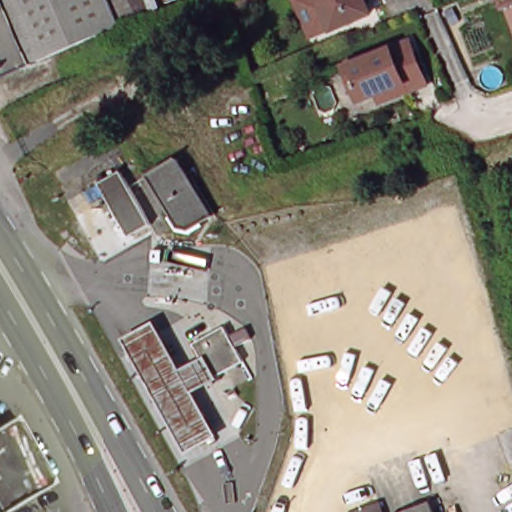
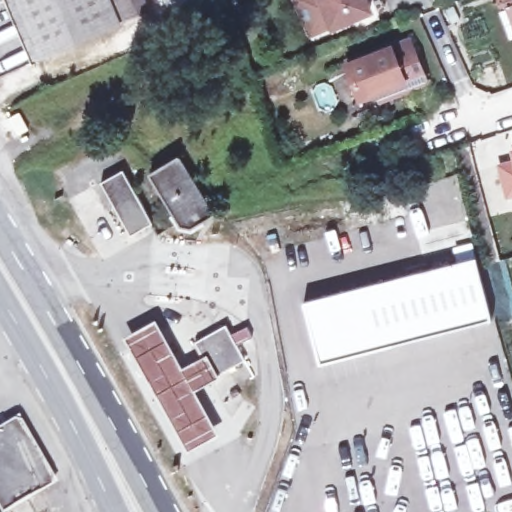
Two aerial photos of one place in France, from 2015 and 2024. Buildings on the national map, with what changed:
unchanged [(7,0),(116,0),(122,16),(30,55),(7,0)]
unchanged [(122,16),(116,0),(146,0),(148,5),(122,16)]
unchanged [(233,0),(250,0),(236,6),(233,0)]
unchanged [(331,20),(322,0),(365,0),(366,3),(331,20)]
unchanged [(499,0),(512,0),(512,23),(509,25),(499,0)]
unchanged [(379,88),(364,95),(349,62),(411,36),(429,77),(409,85),(383,96),(379,88)]
new [(512,148),(512,158),(509,149),(512,148)]
unchanged [(174,218),(177,217),(153,175),(183,158),(216,217),(204,223),(206,226),(193,233),(181,228),(174,218)]
new [(496,165),(512,160),(512,197),(504,200),(496,165)]
unchanged [(151,220),(129,232),(100,179),(120,168),(151,220)]
new [(303,302),(474,259),(490,320),(319,363),(303,302)]
new [(512,286),(512,317),(494,319),(492,310),(497,309),(488,265),(506,260),(512,286)]
unchanged [(198,392),(224,439),(195,455),(130,340),(159,324),(178,357),(200,345),(219,379),(198,392)]
unchanged [(230,328),(249,363),(219,379),(200,345),(230,328)]
unchanged [(5,421),(48,491),(14,511),(1,488),(0,489),(0,424),(5,421)]
demolished [(381,505),(384,512),(361,512),(381,505)]
demolished [(434,506),(436,512),(417,512),(434,506)]

